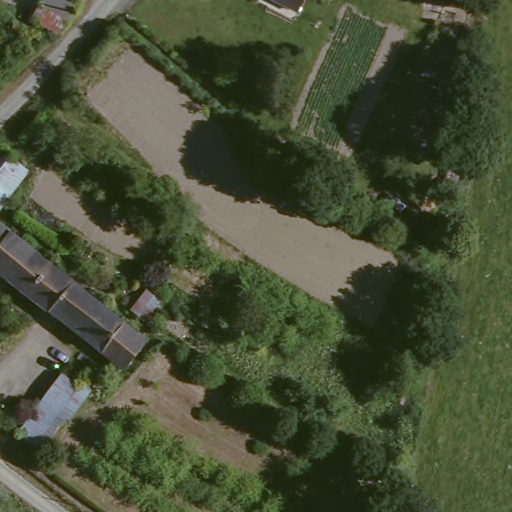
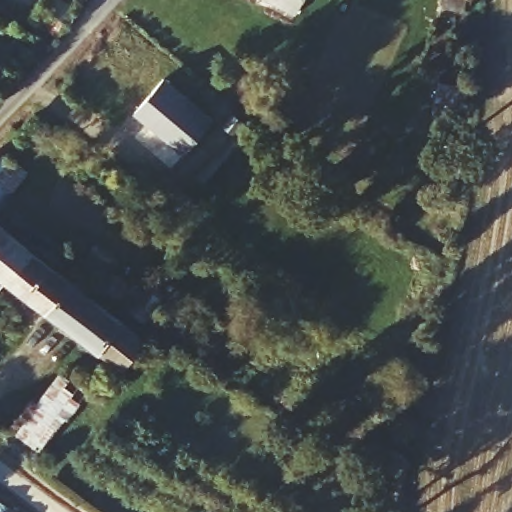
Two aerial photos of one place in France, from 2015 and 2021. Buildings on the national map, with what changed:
unchanged [(39,0),(42,0),(71,5),(71,20),(54,39),(41,30),(51,17),(38,15),(39,0)]
unchanged [(267,0),(304,0),(296,15),(267,0)]
unchanged [(428,1),(428,0),(451,0),(450,5),(428,1)]
new [(135,112),(165,79),(212,121),(185,154),(135,112)]
unchanged [(8,160),(26,175),(0,202),(0,168),(8,160)]
unchanged [(27,249),(2,280),(0,278),(0,227),(27,249)]
unchanged [(41,310),(2,280),(27,249),(67,280),(41,310)]
unchanged [(169,285),(145,325),(129,313),(153,276),(169,285)]
unchanged [(106,365),(41,310),(67,280),(115,318),(117,320),(138,337),(112,370),(106,365)]
unchanged [(11,435),(66,377),(73,382),(87,396),(66,419),(33,455),(11,435)]

